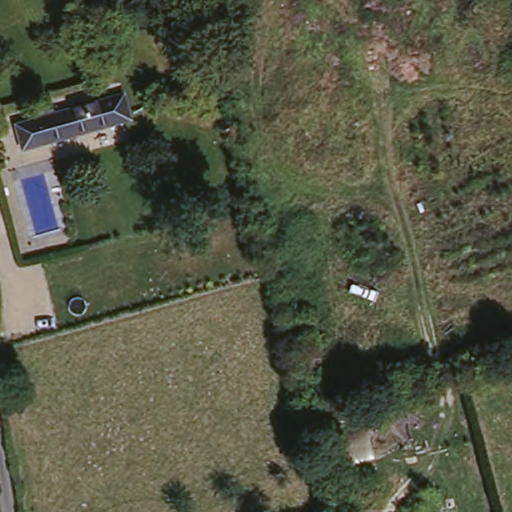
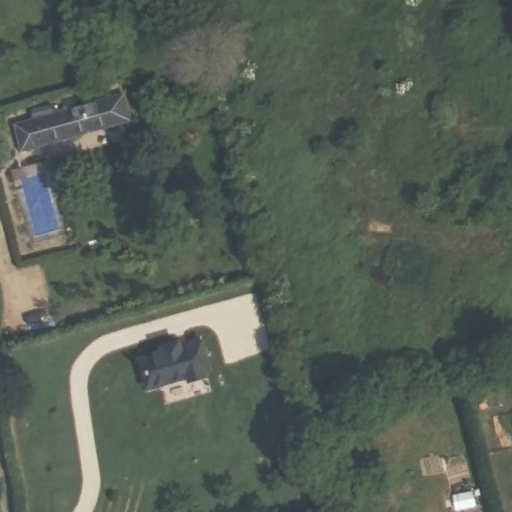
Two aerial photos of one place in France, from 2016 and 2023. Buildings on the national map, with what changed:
unchanged [(122,43),(106,49),(96,24),(113,18),(122,43)]
unchanged [(15,126),(41,118),(124,95),(130,120),(49,143),(22,150),(15,126)]
new [(156,354),(156,349),(179,343),(181,348),(202,342),(210,373),(204,374),(205,381),(186,387),(184,382),(145,391),(138,359),(156,354)]

